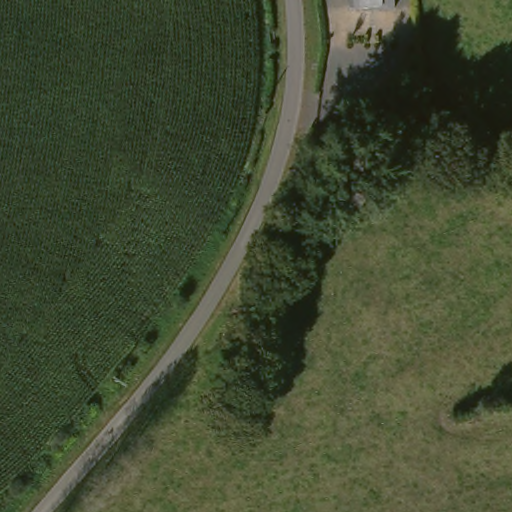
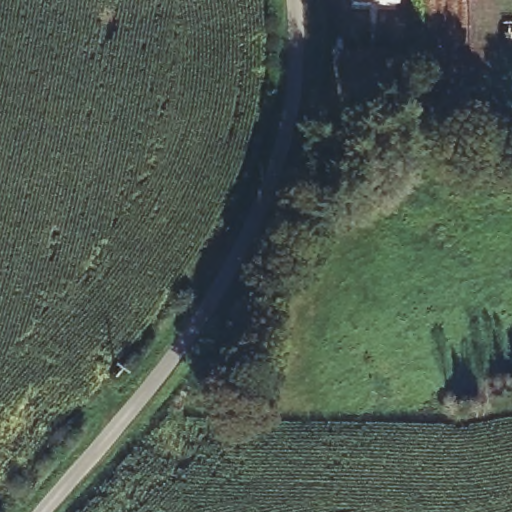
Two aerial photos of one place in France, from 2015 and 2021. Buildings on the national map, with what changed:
unchanged [(349,7),(349,0),(397,0),(397,6),(349,7)]
unchanged [(393,115),(401,106),(420,124),(414,130),(410,135),(390,119),(393,115)]

